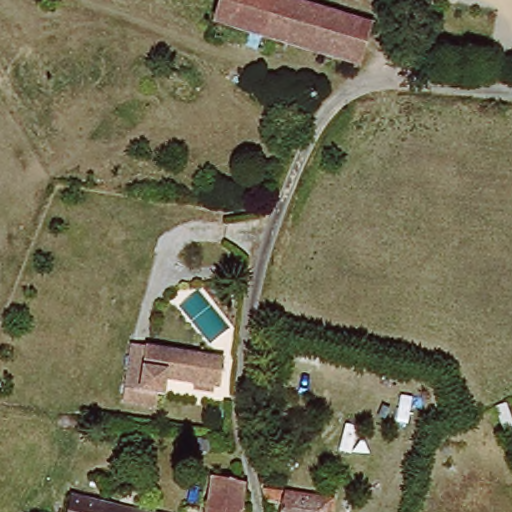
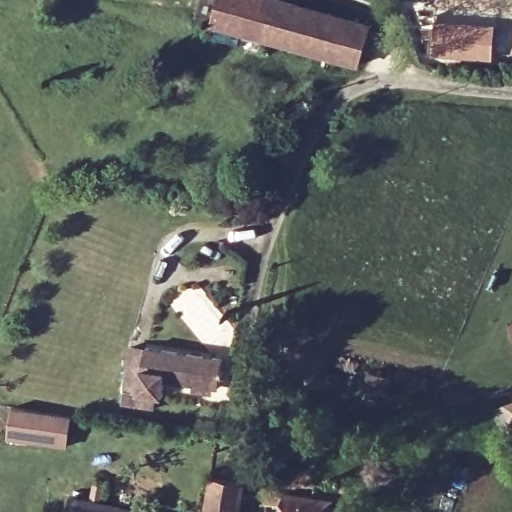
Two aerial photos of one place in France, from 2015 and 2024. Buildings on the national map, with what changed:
unchanged [(228,0),(275,0),(263,33),(222,18),(228,0)]
unchanged [(275,0),(284,0),(366,29),(353,64),(263,33),(275,0)]
new [(429,21),(495,25),(492,61),(425,59),(429,21)]
unchanged [(166,398),(158,399),(157,410),(125,411),(127,360),(145,360),(145,353),(204,353),(215,353),(216,383),(205,383),(168,382),(166,398)]
new [(9,439),(11,409),(70,419),(66,449),(9,439)]
unchanged [(242,512),(191,512),(185,511),(186,501),(210,505),(212,482),(239,487),(243,501),(242,512)]
unchanged [(330,512),(264,512),(260,488),(330,499),(330,512)]
unchanged [(70,500),(130,511),(130,512),(69,512),(70,500)]
unchanged [(130,511),(136,512),(130,512),(130,511)]

